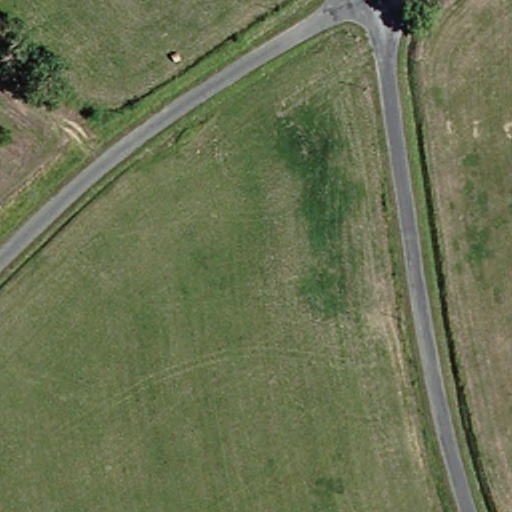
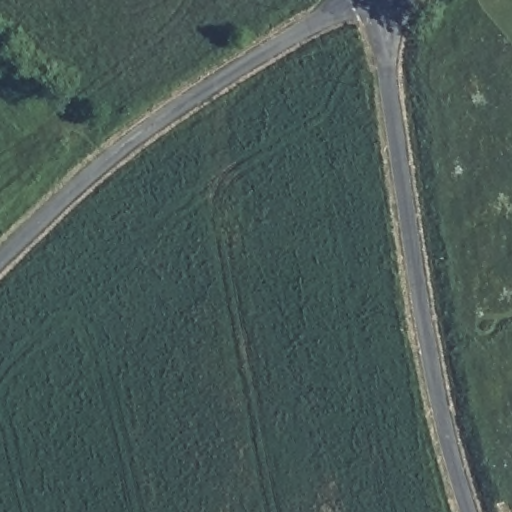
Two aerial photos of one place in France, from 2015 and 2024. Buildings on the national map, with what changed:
[]

